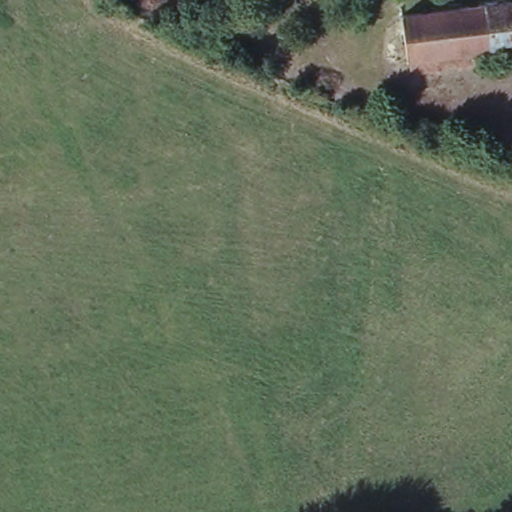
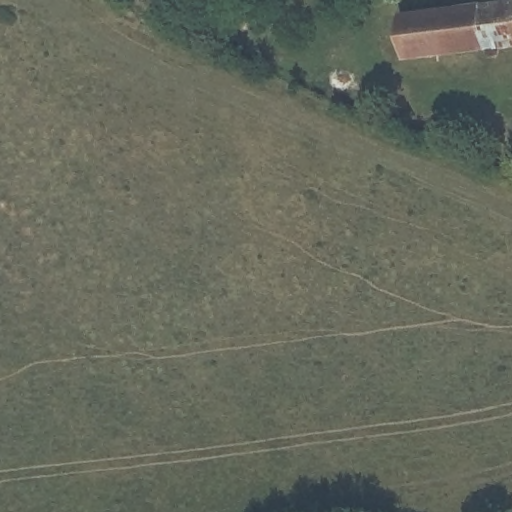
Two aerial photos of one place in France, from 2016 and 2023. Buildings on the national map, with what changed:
unchanged [(512,5),(512,51),(492,54),(487,9),(512,5)]
unchanged [(404,20),(487,9),(492,54),(410,65),(381,69),(379,40),(406,36),(404,20)]

